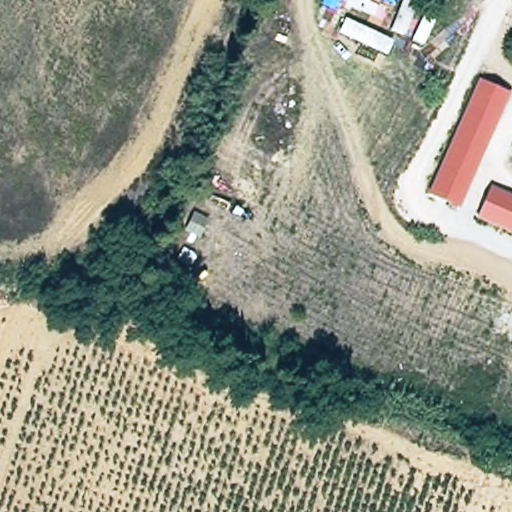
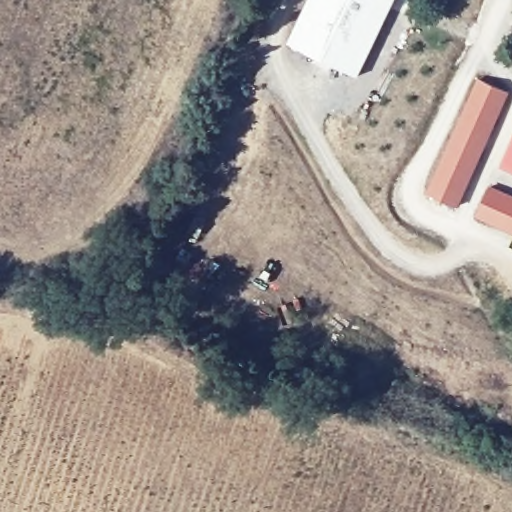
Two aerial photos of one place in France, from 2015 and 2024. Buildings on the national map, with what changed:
new [(309,0),(396,0),(358,77),(289,43),(309,0)]
unchanged [(509,95),(460,207),(427,192),(477,79),(509,95)]
new [(512,174),(499,168),(512,138),(512,174)]
unchanged [(512,193),(512,233),(477,217),(491,184),(512,193)]

